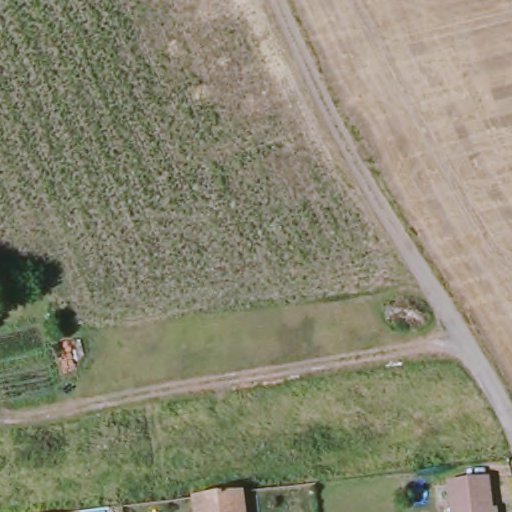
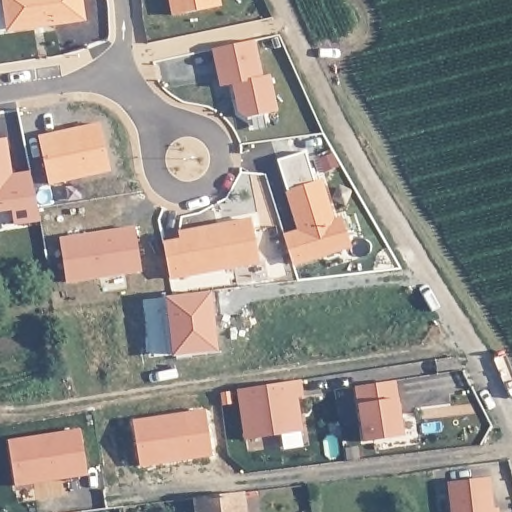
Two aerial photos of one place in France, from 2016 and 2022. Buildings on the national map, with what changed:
new [(42,18),(6,24),(3,0),(39,0),(42,18)]
new [(82,16),(43,22),(42,18),(39,0),(80,0),(82,16)]
new [(218,6),(172,14),(169,0),(217,0),(218,6)]
new [(254,39),(261,75),(269,74),(276,106),(245,113),(239,107),(233,79),(220,82),(213,48),(254,39)]
new [(97,122),(106,169),(45,181),(35,135),(97,122)]
new [(11,182),(29,180),(35,216),(0,221),(0,136),(4,135),(11,182)]
new [(304,146),(313,177),(319,175),(331,216),(340,213),(349,241),(292,259),(283,231),(299,226),(276,155),(304,146)]
new [(178,236),(178,228),(216,222),(217,226),(225,224),(223,220),(251,215),(259,260),(170,277),(163,239),(178,236)]
new [(134,224),(141,266),(66,278),(59,235),(134,224)]
new [(244,439),(236,390),(301,381),(304,397),(298,398),(301,429),(244,439)]
new [(395,381),(399,398),(404,435),(363,441),(357,403),(355,388),(395,381)]
new [(15,485),(8,440),(80,429),(87,474),(15,485)]
unchanged [(489,512),(445,512),(441,481),(484,476),(489,512)]
unchanged [(242,512),(193,512),(191,496),(240,490),(242,512)]

